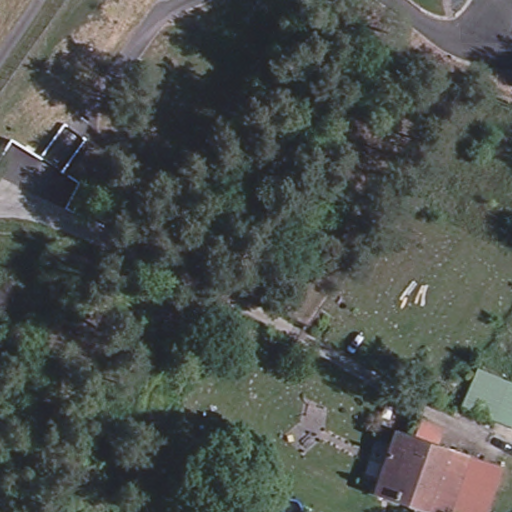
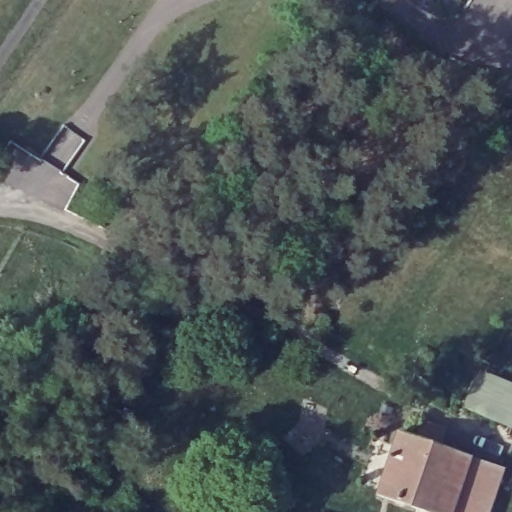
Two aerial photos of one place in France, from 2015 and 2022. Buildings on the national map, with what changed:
unchanged [(512,425),(462,406),(480,366),(512,379),(512,425)]
unchanged [(432,511),(387,494),(410,430),(432,438),(420,469),(444,478),(432,511)]
unchanged [(432,438),(479,454),(458,512),(437,512),(432,511),(444,478),(420,469),(432,438)]

